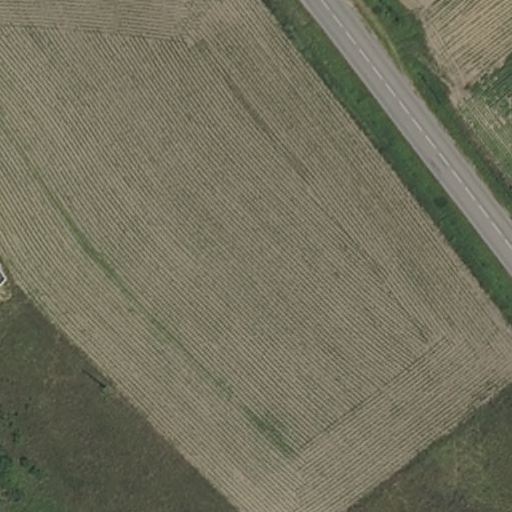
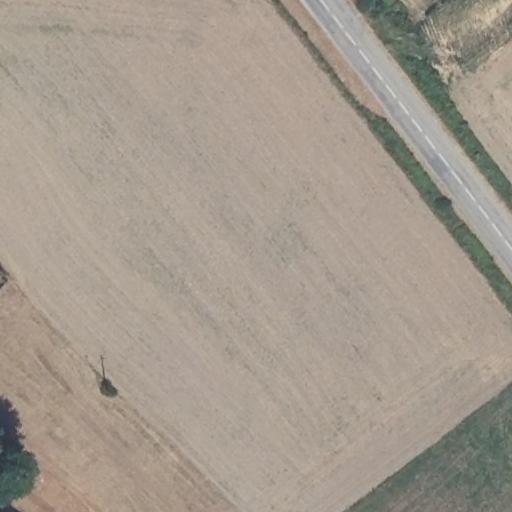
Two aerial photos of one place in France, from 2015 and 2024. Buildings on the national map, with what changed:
[]

